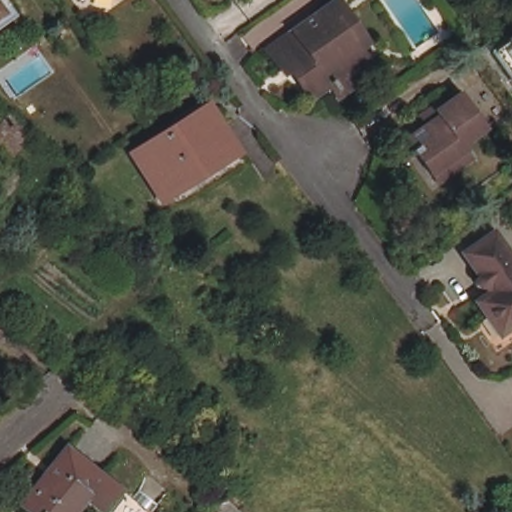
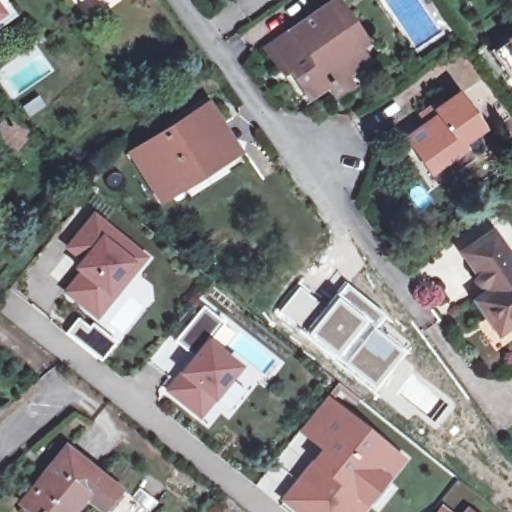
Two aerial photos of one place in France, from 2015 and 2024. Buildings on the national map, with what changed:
unchanged [(2,0),(8,9),(15,19),(0,28),(0,0),(2,0)]
unchanged [(460,0),(490,41),(483,46),(450,0),(460,0)]
unchanged [(363,57),(334,76),(340,88),(333,93),(324,81),(305,94),(283,61),(277,65),(262,45),(289,26),(326,2),(363,57)]
unchanged [(512,29),(512,65),(495,41),(512,29)]
demolished [(512,83),(512,87),(510,85),(512,83)]
unchanged [(419,173),(396,140),(428,116),(425,111),(447,95),(472,128),(449,144),(452,148),(419,173)]
unchanged [(216,134),(229,156),(164,195),(138,151),(211,106),(224,130),(216,134)]
unchanged [(24,130),(3,158),(0,155),(0,111),(24,130)]
new [(111,299),(96,319),(65,294),(81,275),(76,271),(82,263),(67,250),(94,217),(138,253),(144,258),(111,299)]
unchanged [(479,309),(468,293),(481,285),(478,280),(467,267),(453,246),(483,225),(511,263),(512,261),(512,311),(497,321),(485,304),(479,309)]
new [(346,281),(388,317),(379,328),(409,352),(375,393),(297,329),(277,311),(300,284),(321,301),(325,305),(346,281)]
new [(177,375),(193,355),(176,342),(203,308),(222,322),(208,339),(243,367),(214,403),(200,421),(163,391),(177,375)]
new [(319,450),(297,433),(326,396),(405,460),(364,512),(292,512),(278,501),(319,450)]
unchanged [(71,500),(75,503),(68,512),(30,512),(20,504),(64,448),(115,488),(99,506),(78,490),(71,500)]
unchanged [(132,499),(148,512),(121,512),(132,499)]
new [(440,504),(451,512),(434,512),(440,504)]
new [(467,506),(474,512),(462,512),(467,506)]

